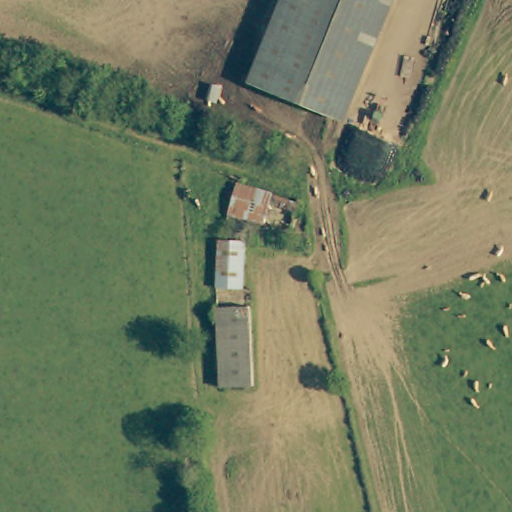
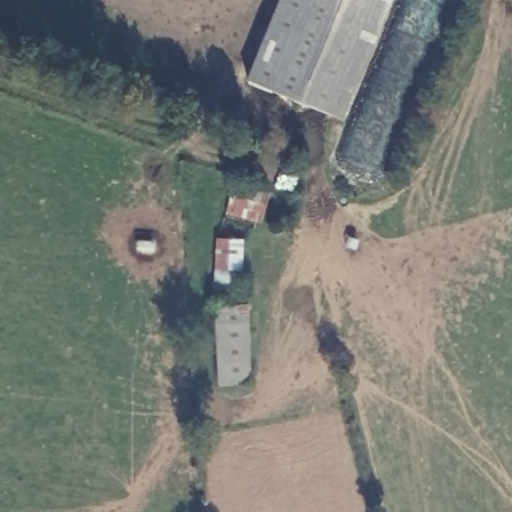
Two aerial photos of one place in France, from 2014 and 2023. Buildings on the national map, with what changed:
unchanged [(275,0),(391,0),(341,119),(242,82),(275,0)]
unchanged [(262,230),(226,218),(229,200),(218,197),(220,185),(269,199),(262,230)]
unchanged [(217,286),(221,242),(249,245),(244,290),(217,286)]
unchanged [(214,386),(217,306),(252,307),(250,387),(214,386)]

